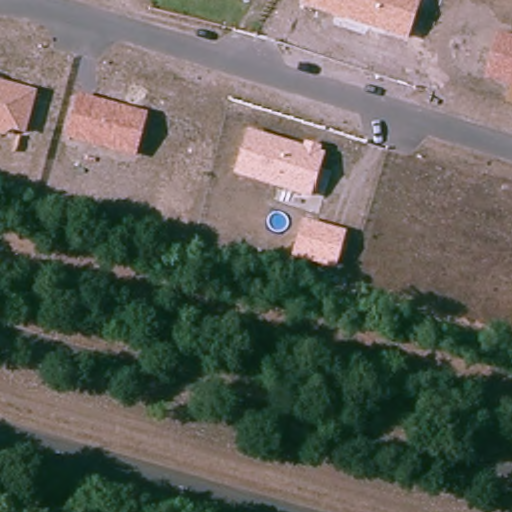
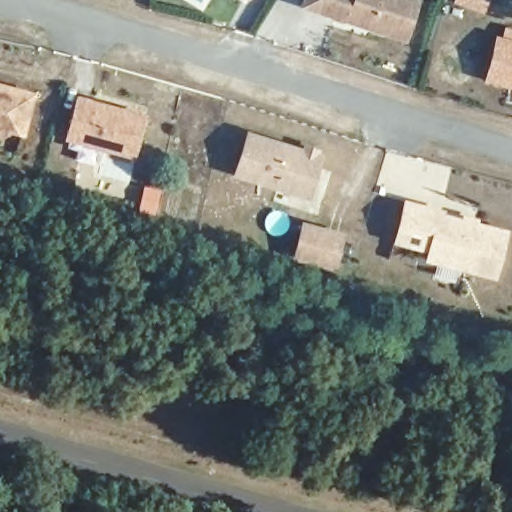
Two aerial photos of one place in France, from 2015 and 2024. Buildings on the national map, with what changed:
unchanged [(300,5),(302,0),(421,0),(408,42),(300,5)]
unchanged [(496,35),(512,39),(512,89),(482,82),(496,35)]
unchanged [(25,137),(0,130),(0,83),(36,92),(25,137)]
unchanged [(64,141),(75,95),(146,113),(136,161),(64,141)]
unchanged [(231,177),(245,131),(325,154),(312,202),(231,177)]
new [(425,260),(427,252),(392,242),(403,199),(445,209),(443,214),(461,217),(462,214),(479,217),(478,222),(509,230),(496,279),(425,260)]
unchanged [(335,272),(290,258),(300,221),(345,233),(335,272)]

